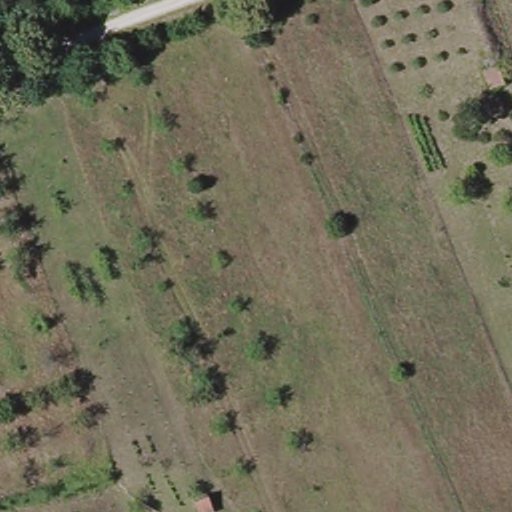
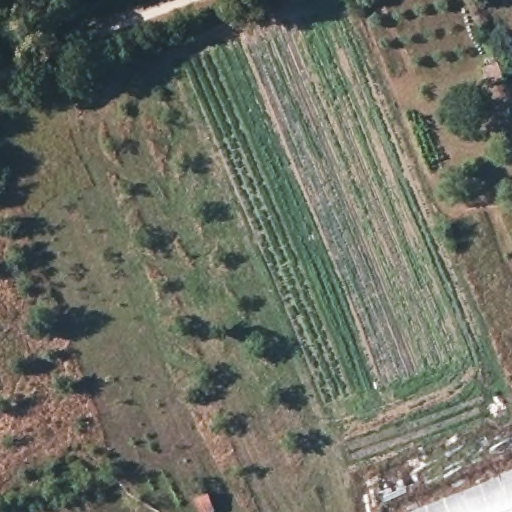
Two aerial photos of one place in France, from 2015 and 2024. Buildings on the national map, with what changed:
unchanged [(504,85),(487,90),(480,73),(496,66),(504,85)]
new [(467,489),(512,470),(512,512),(408,512),(467,489)]
unchanged [(191,503),(207,498),(212,512),(196,512),(191,503)]

